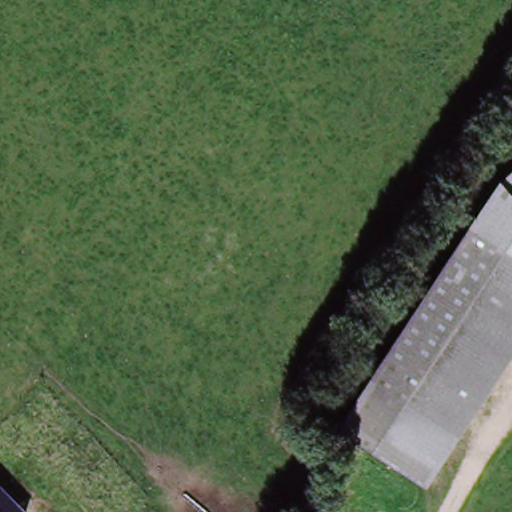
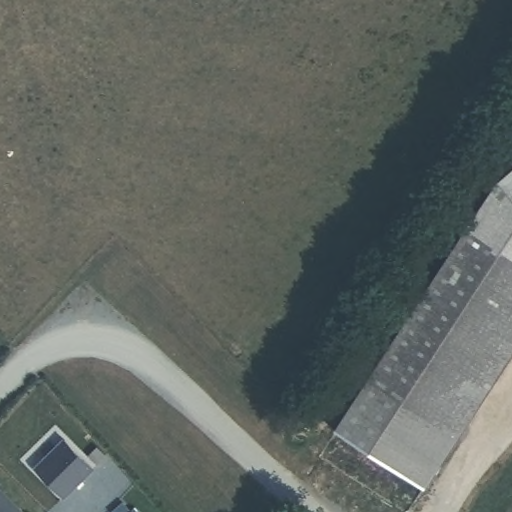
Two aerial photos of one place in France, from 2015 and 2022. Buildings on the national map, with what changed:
unchanged [(340,428),(498,179),(512,168),(512,365),(430,487),(340,428)]
new [(64,442),(92,471),(61,501),(33,472),(64,442)]
unchanged [(24,512),(0,512),(0,488),(24,512)]

